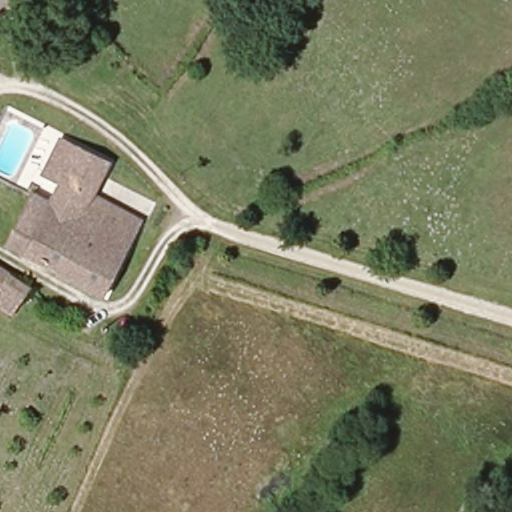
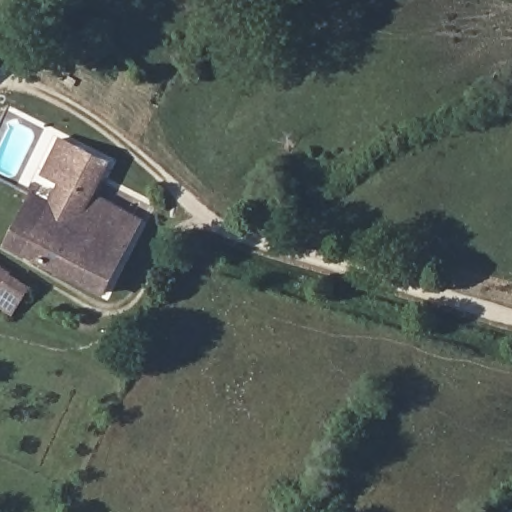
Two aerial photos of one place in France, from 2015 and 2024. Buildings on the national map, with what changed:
unchanged [(65,191),(43,177),(64,139),(117,167),(102,202),(147,227),(107,301),(30,257),(55,210),(65,191)]
unchanged [(55,210),(30,257),(9,244),(35,197),(55,210)]
unchanged [(5,283),(27,298),(19,312),(0,301),(0,265),(12,273),(5,283)]

